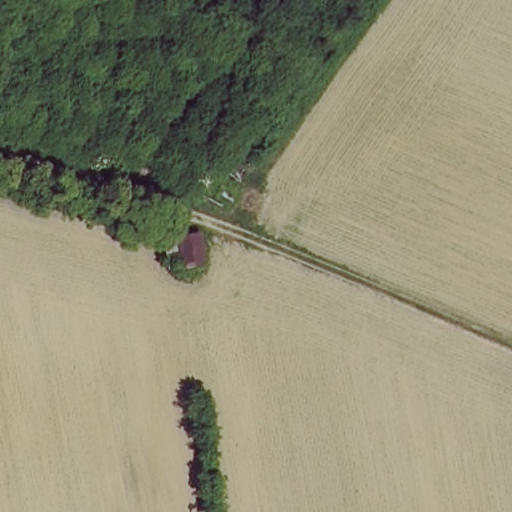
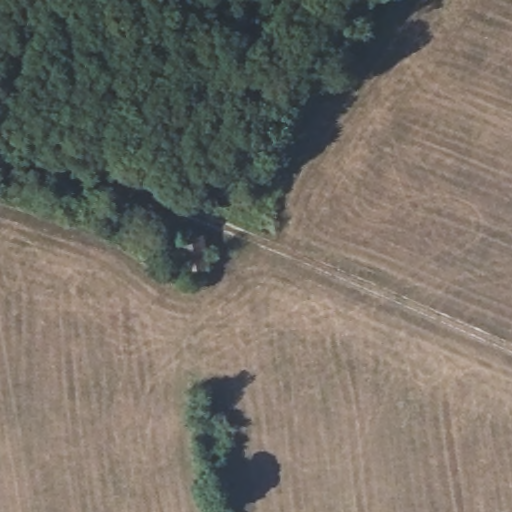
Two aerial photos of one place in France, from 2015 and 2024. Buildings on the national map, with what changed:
unchanged [(199,239),(203,269),(185,271),(183,267),(170,268),(168,256),(165,256),(162,242),(199,239)]

